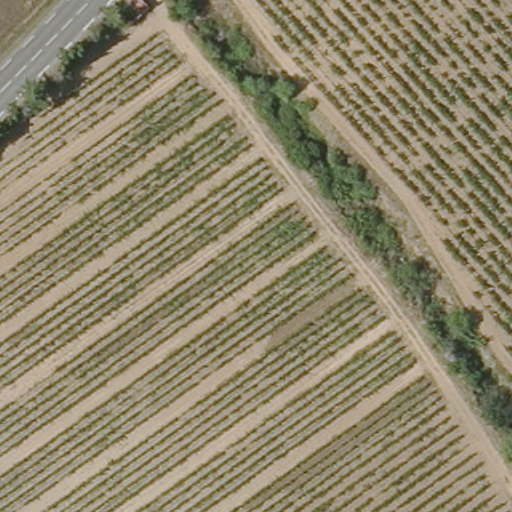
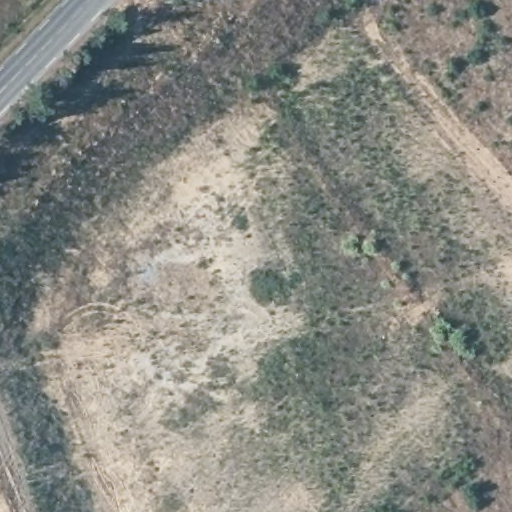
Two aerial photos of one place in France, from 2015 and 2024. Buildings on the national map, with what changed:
unchanged [(110,18),(107,13),(119,0),(134,0),(147,12),(125,33),(110,18)]

